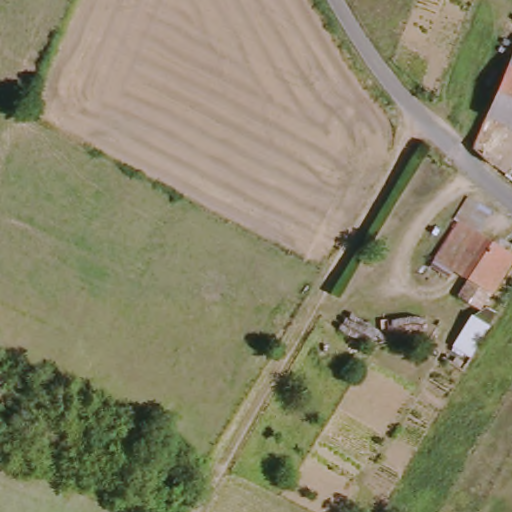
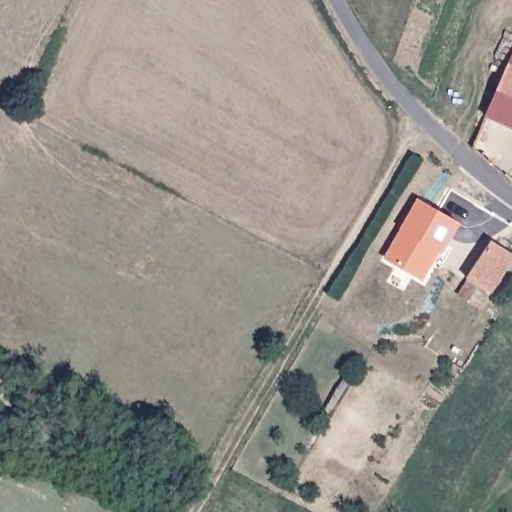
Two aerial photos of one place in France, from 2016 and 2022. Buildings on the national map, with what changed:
unchanged [(492,121),(512,76),(512,130),(492,121)]
new [(387,259),(420,201),(460,223),(444,251),(439,249),(423,279),(387,259)]
unchanged [(498,243),(512,251),(512,270),(497,295),(493,295),(486,309),(464,296),(475,280),(485,264),(497,245),(498,243)]
unchanged [(0,387),(0,369),(7,373),(0,387)]

